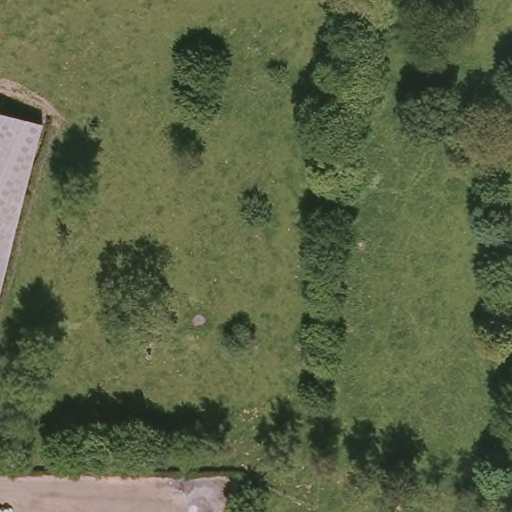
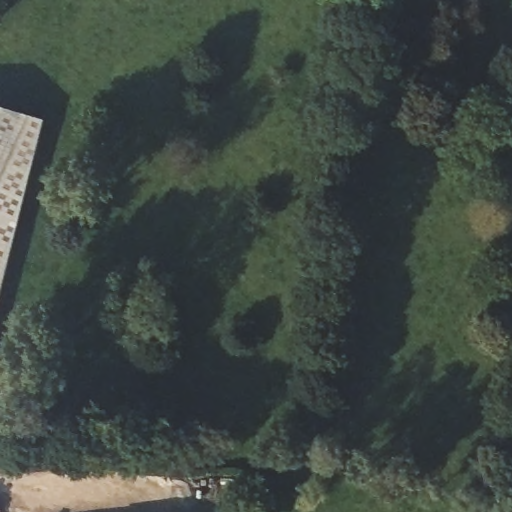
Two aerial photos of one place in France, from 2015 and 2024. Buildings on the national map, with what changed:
unchanged [(41,121),(0,286),(0,110),(13,114),(41,121)]

